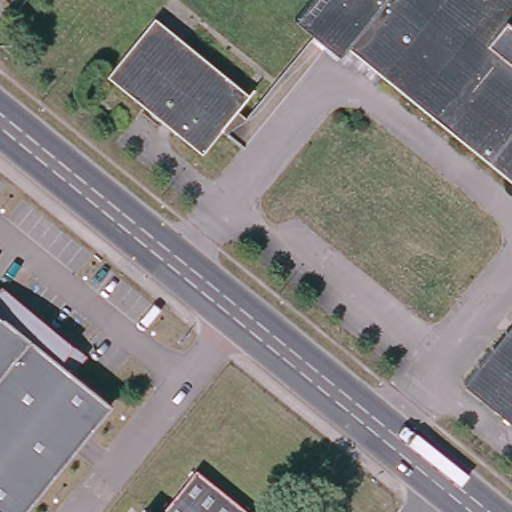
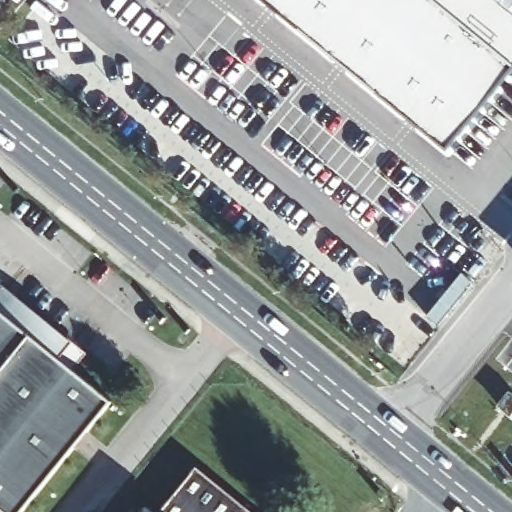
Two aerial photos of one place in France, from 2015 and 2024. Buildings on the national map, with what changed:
new [(256,0),(512,0),(512,71),(443,156),(256,0)]
demolished [(302,0),(512,0),(512,181),(344,46),(337,54),(322,42),(309,30),(290,15),(302,0)]
demolished [(148,13),(244,91),(195,150),(99,72),(148,13)]
unchanged [(20,512),(5,512),(0,509),(0,290),(2,288),(82,351),(67,370),(109,401),(20,512)]
demolished [(512,320),(512,407),(507,413),(491,400),(464,376),(512,320)]
unchanged [(141,503),(150,510),(190,461),(251,512),(134,512),(141,503)]

